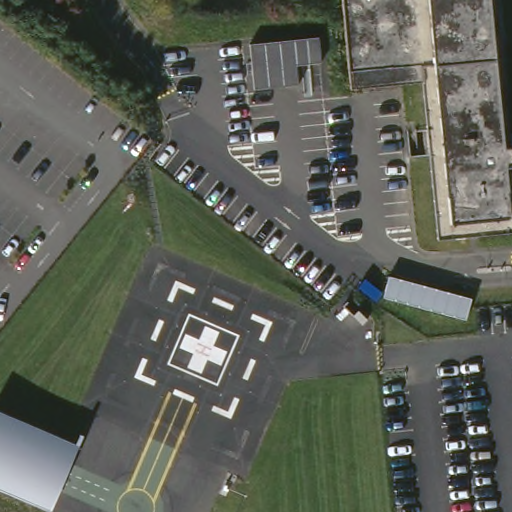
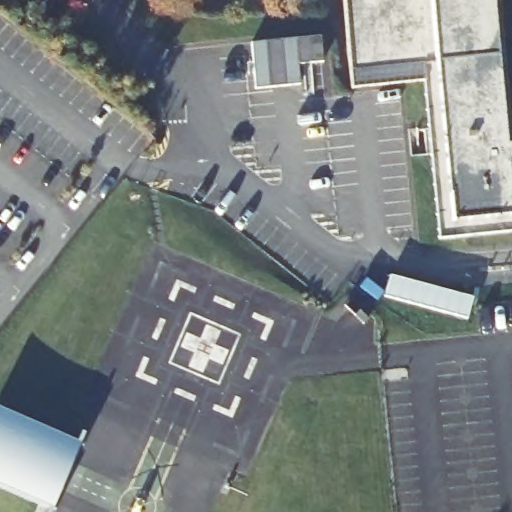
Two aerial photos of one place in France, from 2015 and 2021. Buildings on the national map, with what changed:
unchanged [(508,0),(512,40),(512,224),(450,230),(434,71),(362,79),(354,0),(508,0)]
unchanged [(300,84),(262,85),(258,41),(325,36),(327,61),(299,63),(300,84)]
unchanged [(85,437),(56,504),(0,481),(0,406),(2,402),(85,437)]

